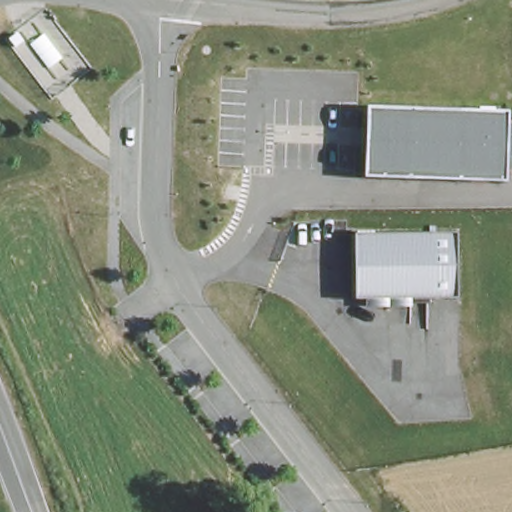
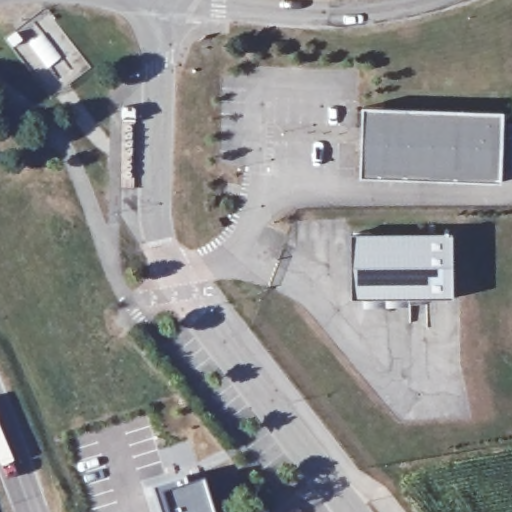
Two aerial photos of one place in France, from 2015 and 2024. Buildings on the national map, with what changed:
unchanged [(504,173),(504,183),(362,178),(364,106),(505,111),(506,122),(512,122),(512,173),(504,173)]
unchanged [(455,298),(353,299),(352,235),(454,233),(455,298)]
new [(182,477),(185,486),(201,480),(211,512),(157,512),(150,488),(182,477)]

